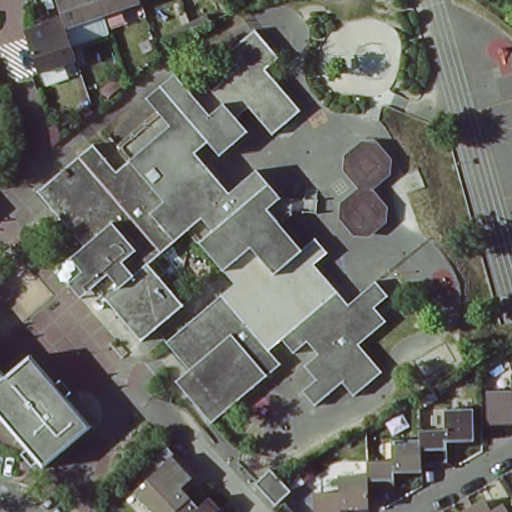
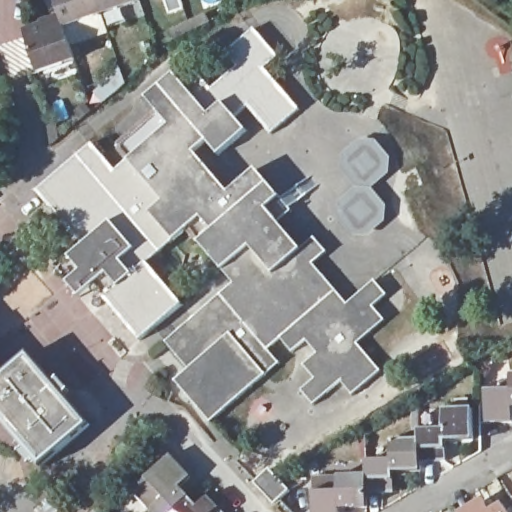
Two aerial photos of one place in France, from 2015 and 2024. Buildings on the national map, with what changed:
unchanged [(27,34),(44,29),(43,24),(64,17),(58,1),(63,0),(99,0),(140,0),(142,5),(105,17),(110,33),(73,45),(79,62),(40,75),(27,34)]
unchanged [(275,57),(263,68),(297,111),(267,136),(244,109),(233,118),(246,132),(218,156),(205,141),(191,153),(225,195),(256,169),(279,196),(264,209),(300,251),(313,239),(325,252),(311,263),(345,305),(373,282),(385,297),(370,309),(382,323),(356,345),(379,372),(349,397),(340,386),(313,410),(298,391),(312,380),(301,367),(316,355),(304,340),(290,352),(279,340),(266,350),(277,363),(209,422),(173,380),(198,359),(174,330),(228,283),(184,230),(144,263),(179,305),(138,340),(65,256),(78,245),(33,192),(90,145),(114,172),(124,163),(110,147),(153,111),(143,99),(171,76),(181,88),(196,76),(209,91),(234,70),(221,55),(252,30),(275,57)]
unchanged [(385,206),(384,223),(368,237),(351,236),(336,219),(337,204),(355,189),(341,171),(342,155),(360,140),(375,142),(390,160),(389,175),(371,190),(385,206)]
unchanged [(27,355),(90,428),(41,470),(0,422),(0,380),(4,377),(27,355)]
unchanged [(4,377),(0,380),(0,373),(4,377)]
unchanged [(509,422),(482,421),(483,393),(509,393),(509,376),(512,376),(512,406),(509,406),(509,422)]
unchanged [(476,435),(449,435),(449,457),(420,456),(420,471),(394,471),(395,485),(368,484),(368,502),(340,500),(340,512),(313,512),(314,488),(340,490),(340,471),(369,471),(369,456),(394,456),(394,435),(420,436),(420,425),(448,425),(448,404),(477,405),(476,435)]
unchanged [(131,490),(169,455),(190,480),(178,490),(197,511),(209,500),(220,512),(151,512),(131,490)]
unchanged [(252,479),(267,467),(280,483),(287,491),(272,503),(264,492),(252,479)]
unchanged [(482,500),(488,512),(462,512),(482,500)]
unchanged [(502,505),(506,512),(490,512),(502,505)]

